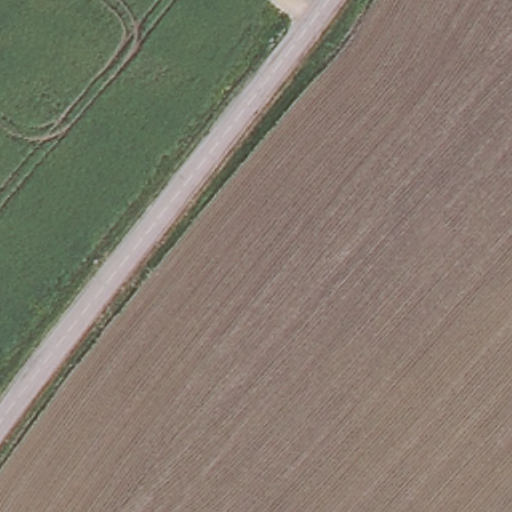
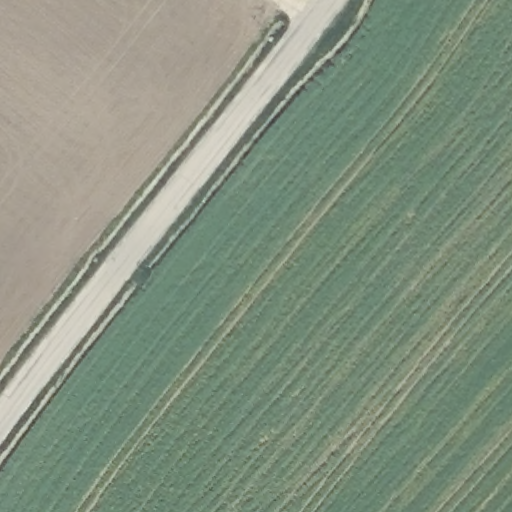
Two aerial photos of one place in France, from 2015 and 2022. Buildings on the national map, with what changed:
[]

